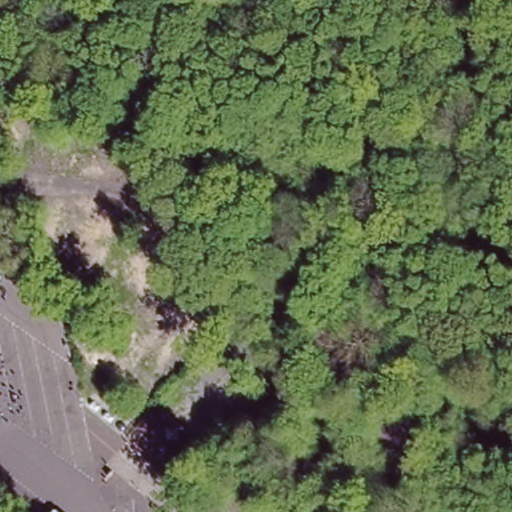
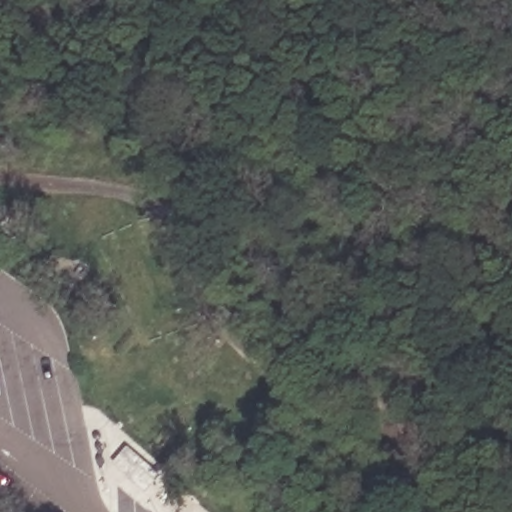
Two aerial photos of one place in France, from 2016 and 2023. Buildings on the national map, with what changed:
unchanged [(175,415),(199,435),(198,456),(158,455),(155,416),(175,415)]

